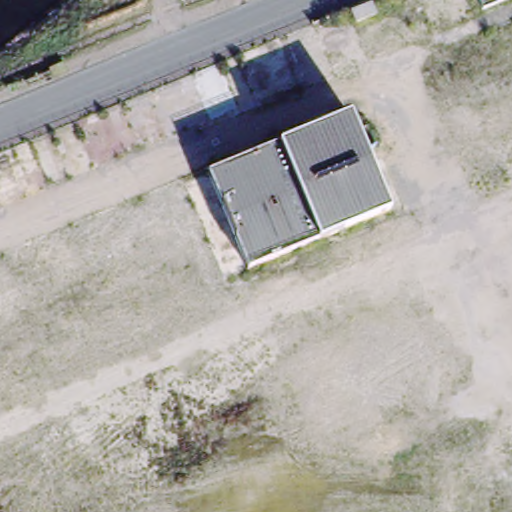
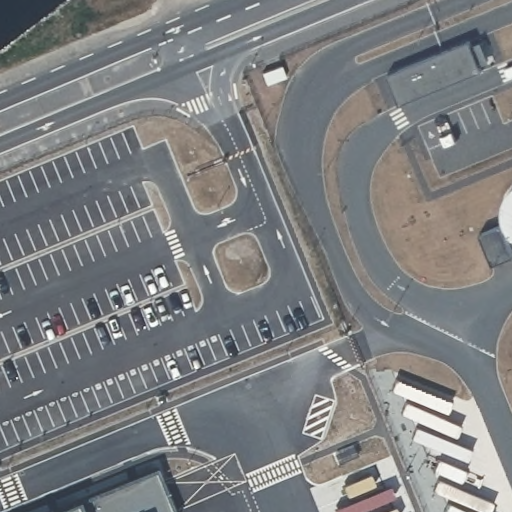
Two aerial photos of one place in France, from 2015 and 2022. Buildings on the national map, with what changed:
demolished [(455,20),(433,28),(422,0),(447,0),(455,20)]
demolished [(481,9),(478,0),(503,0),(481,9)]
new [(388,76),(470,42),(472,48),(480,45),(488,64),(480,68),(481,72),(400,106),(388,76)]
demolished [(350,114),(389,209),(362,220),(322,126),(350,114)]
demolished [(362,220),(233,270),(200,170),(322,126),(362,220)]

